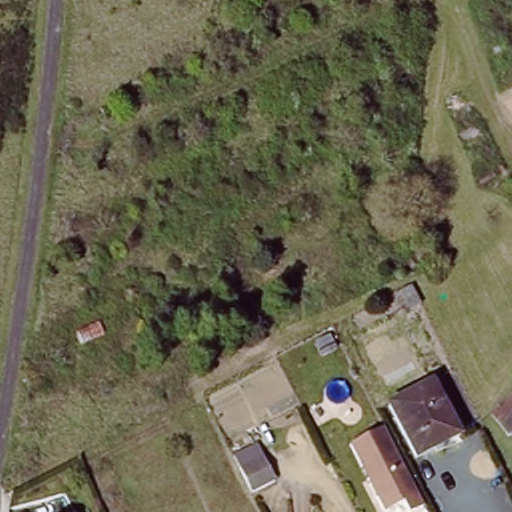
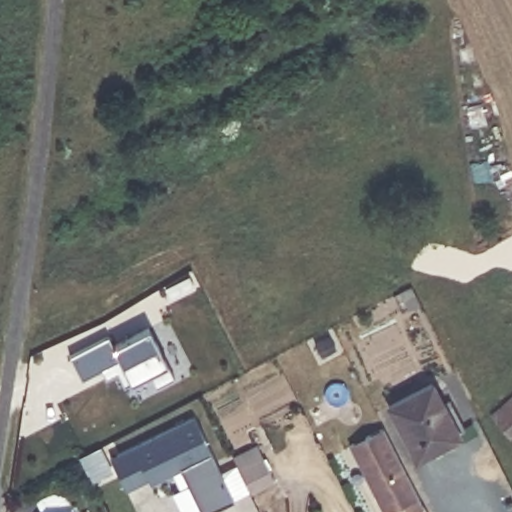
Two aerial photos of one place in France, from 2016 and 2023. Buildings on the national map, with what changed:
demolished [(73,368),(63,340),(101,326),(107,338),(82,348),(87,361),(73,368)]
new [(157,386),(151,371),(133,380),(126,384),(120,371),(108,377),(102,367),(83,377),(71,356),(108,337),(114,345),(148,327),(168,363),(176,376),(157,386)]
unchanged [(412,452),(386,400),(429,380),(455,432),(412,452)]
unchanged [(512,393),(512,435),(510,436),(490,411),(512,393)]
new [(195,416),(235,500),(210,512),(203,512),(181,468),(151,482),(148,478),(126,489),(110,458),(195,416)]
unchanged [(382,428),(422,506),(410,512),(403,512),(398,505),(384,512),(350,445),(382,428)]
new [(253,495),(241,471),(251,492),(235,500),(221,471),(235,464),(232,455),(257,443),(265,459),(276,483),(253,495)]
demolished [(265,459),(276,483),(253,495),(241,471),(265,459)]

